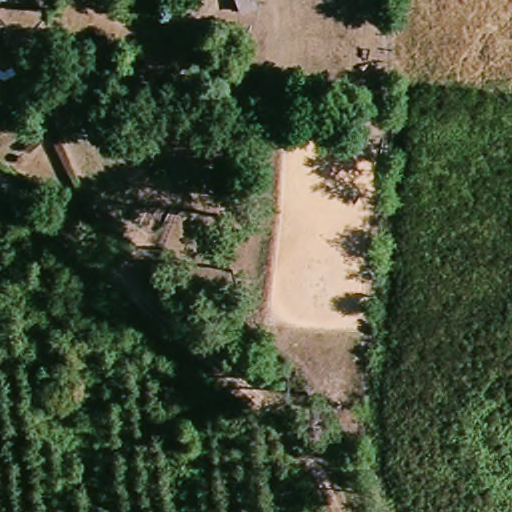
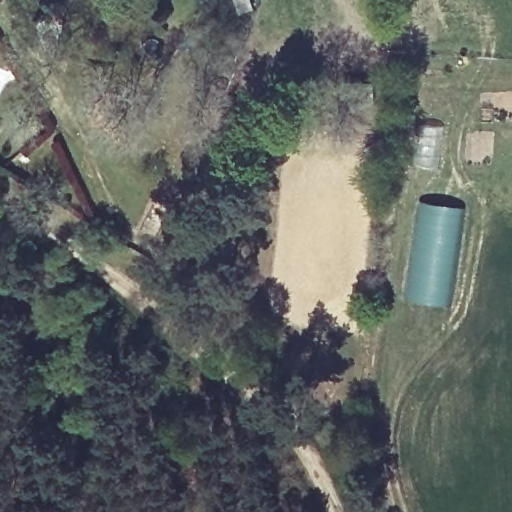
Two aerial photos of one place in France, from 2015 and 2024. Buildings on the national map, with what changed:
unchanged [(298,15),(288,11),(292,0),(297,0),(303,2),(298,15)]
new [(407,301),(419,202),(463,210),(445,307),(428,304),(407,301)]

